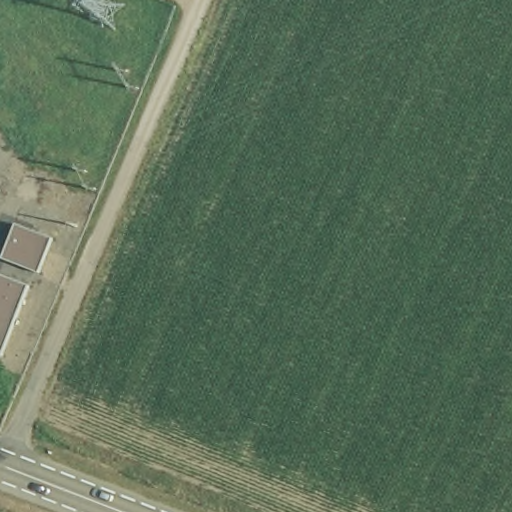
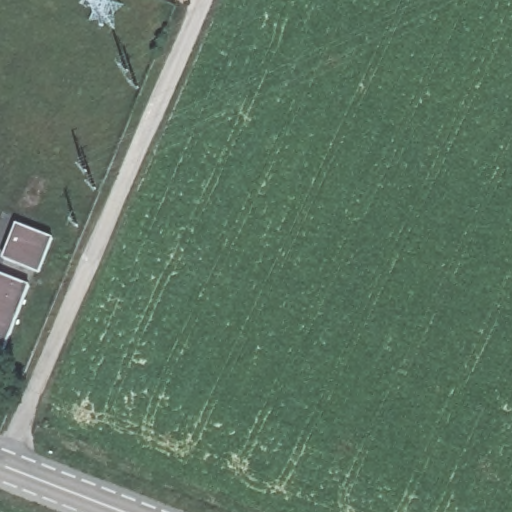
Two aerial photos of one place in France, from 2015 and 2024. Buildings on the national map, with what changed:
unchanged [(5,259),(18,224),(53,237),(40,272),(5,259)]
unchanged [(0,273),(30,285),(2,356),(0,355),(0,273)]

